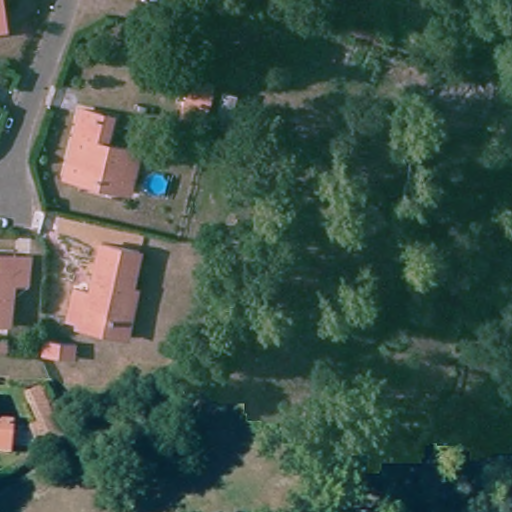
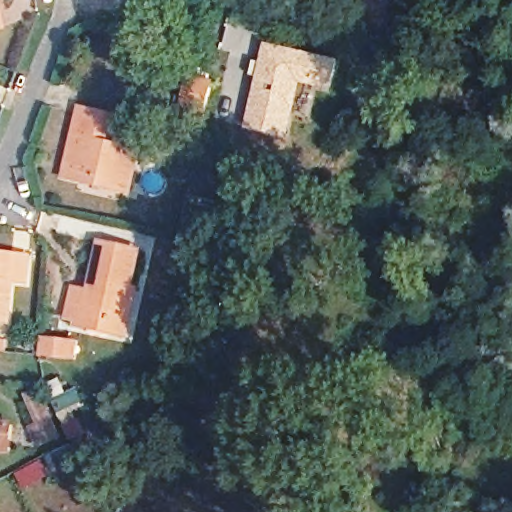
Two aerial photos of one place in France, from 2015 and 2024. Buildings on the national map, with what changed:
unchanged [(0,7),(6,34),(0,35),(0,7)]
new [(263,41),(339,59),(332,92),(301,85),(288,139),(243,128),(263,41)]
unchanged [(182,99),(190,70),(215,76),(205,116),(195,112),(180,109),(182,99)]
unchanged [(67,170),(79,118),(81,110),(96,113),(111,117),(109,126),(106,142),(139,152),(127,196),(109,192),(82,186),(84,174),(67,170)]
unchanged [(67,313),(76,282),(90,283),(99,239),(142,252),(136,285),(133,283),(126,315),(87,306),(83,318),(67,313)]
unchanged [(12,283),(7,318),(0,317),(0,250),(17,251),(30,252),(25,285),(12,283)]
unchanged [(87,306),(126,315),(133,283),(136,285),(142,287),(129,336),(82,323),(83,318),(87,306)]
unchanged [(42,339),(69,341),(69,355),(42,352),(42,339)]
unchanged [(11,453),(0,452),(0,425),(12,427),(11,453)]

